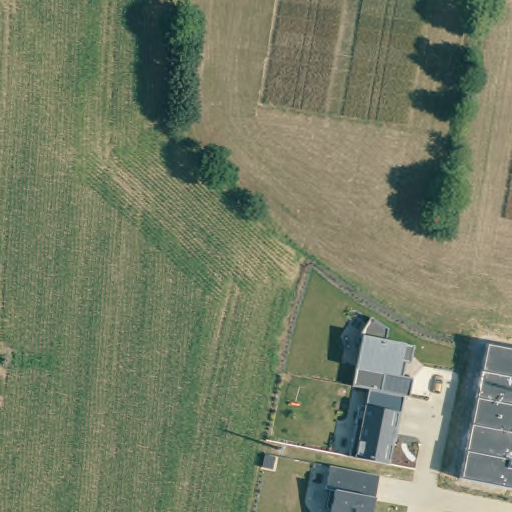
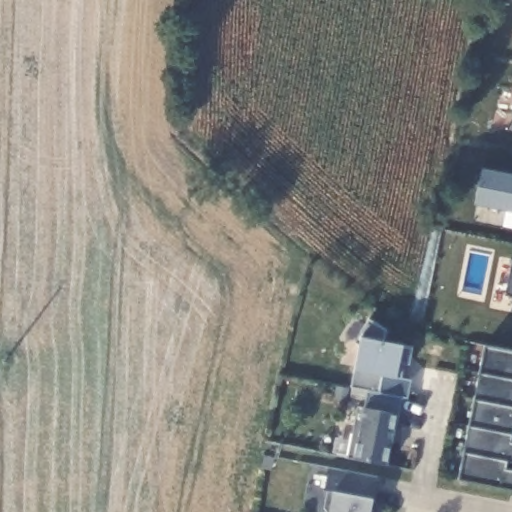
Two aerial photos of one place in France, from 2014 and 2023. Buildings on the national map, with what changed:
new [(485,169),(512,174),(512,210),(478,204),(485,169)]
new [(508,295),(512,274),(512,296),(508,295)]
unchanged [(353,456),(362,407),(369,408),(371,391),(353,387),(356,370),(362,337),(371,321),(387,330),(383,340),(402,343),(413,345),(412,361),(407,361),(404,376),(413,380),(410,397),(403,396),(390,463),(353,456)]
unchanged [(459,478),(486,345),(512,351),(512,488),(459,478)]
unchanged [(333,490),(327,490),(330,468),(380,478),(374,512),(329,512),(333,490)]

